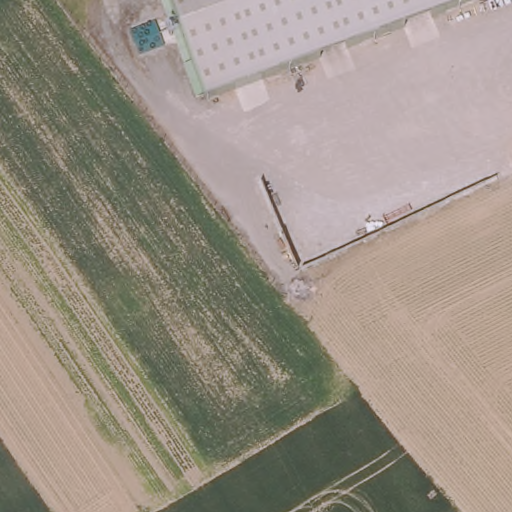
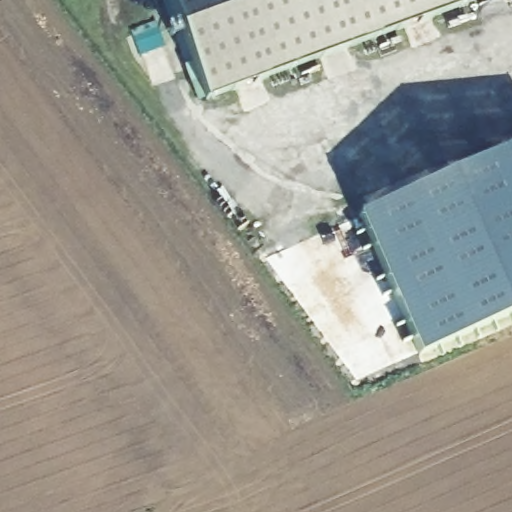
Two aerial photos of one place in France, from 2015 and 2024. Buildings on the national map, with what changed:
unchanged [(460,4),(206,99),(166,0),(475,0),(465,4),(460,4)]
new [(512,312),(419,352),(365,211),(512,143),(512,312)]

